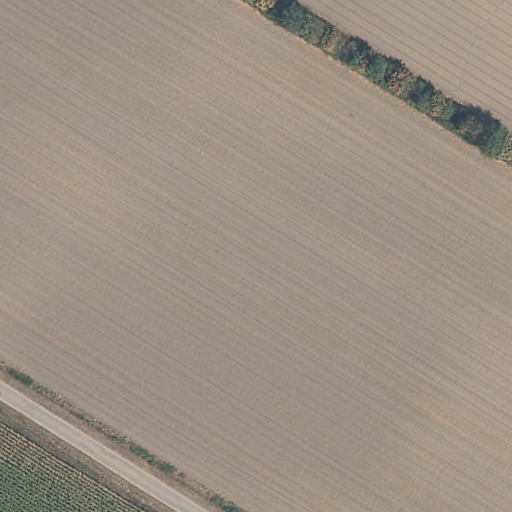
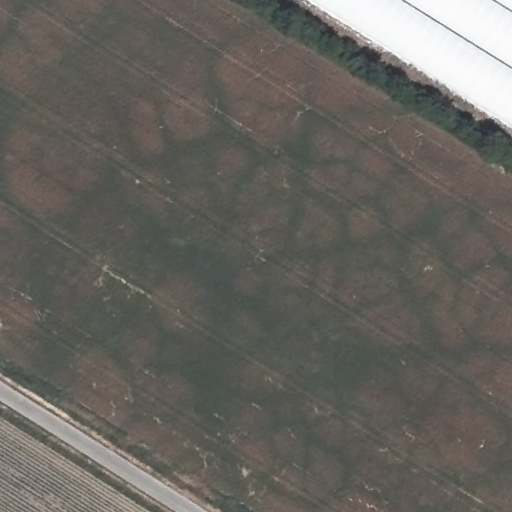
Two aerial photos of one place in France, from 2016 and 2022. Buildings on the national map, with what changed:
new [(307,0),(512,0),(512,128),(307,0)]

